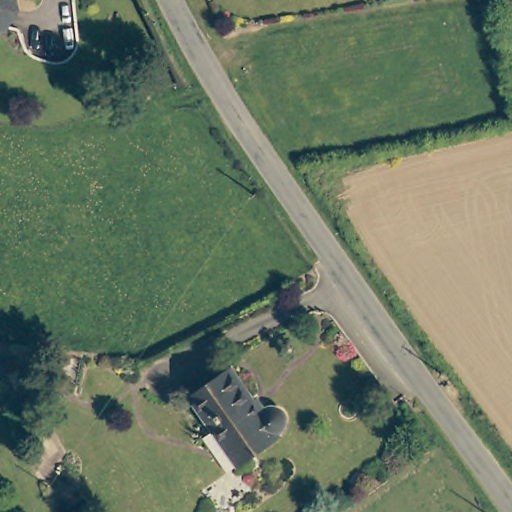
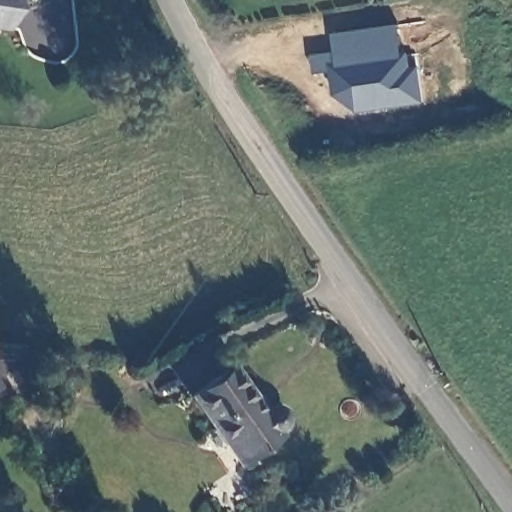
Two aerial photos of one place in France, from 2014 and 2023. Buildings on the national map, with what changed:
unchanged [(0,31),(0,0),(19,0),(14,32),(0,31)]
new [(397,26),(402,56),(406,55),(408,70),(417,69),(422,101),(382,107),(382,105),(358,109),(337,94),(333,65),(336,65),(332,34),(397,26)]
unchanged [(186,401),(227,372),(258,416),(264,412),(273,412),(279,415),(281,422),(278,431),(272,437),(274,440),(237,472),(186,401)]
new [(1,390),(0,390),(0,387),(1,390)]

